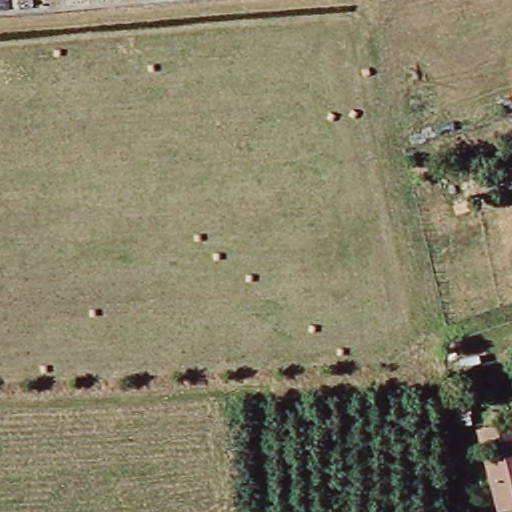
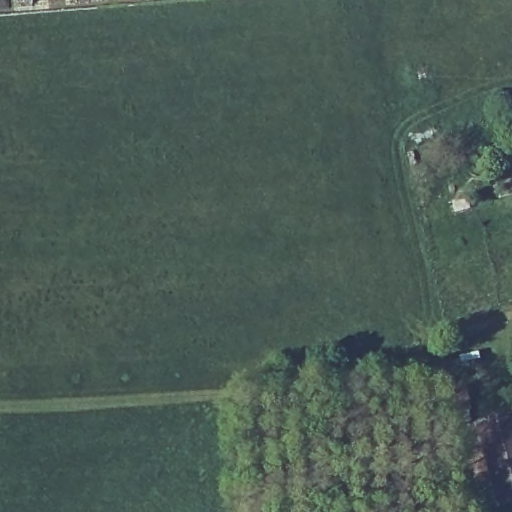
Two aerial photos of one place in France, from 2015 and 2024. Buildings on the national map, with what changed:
unchanged [(486,432),(512,427),(512,505),(503,507),(486,432)]

